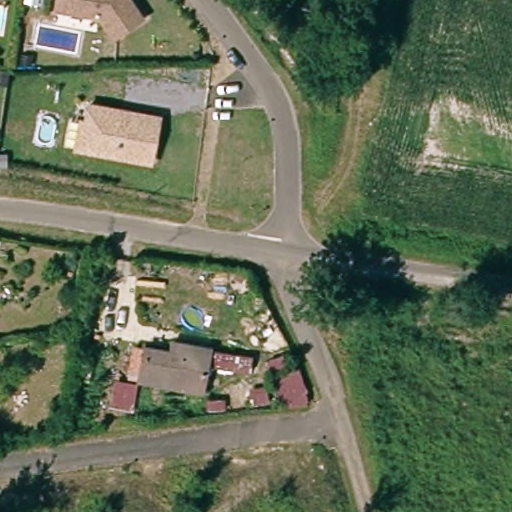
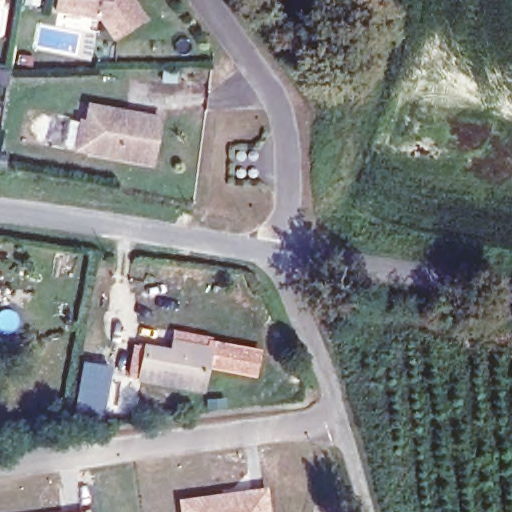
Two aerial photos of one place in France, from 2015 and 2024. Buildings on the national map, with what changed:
unchanged [(142,15),(113,35),(99,15),(55,7),(56,0),(132,0),(142,15)]
unchanged [(5,88),(0,87),(0,73),(7,74),(5,88)]
unchanged [(81,128),(86,128),(89,110),(121,115),(140,118),(159,121),(152,165),(89,156),(77,154),(81,128)]
new [(197,369),(201,351),(181,346),(170,344),(173,331),(213,338),(213,341),(232,345),(232,348),(256,352),(253,378),(197,369)]
unchanged [(164,353),(166,343),(181,346),(201,351),(192,392),(134,379),(140,348),(164,353)]
new [(98,418),(71,413),(81,362),(107,367),(98,418)]
unchanged [(111,387),(126,389),(124,405),(109,402),(111,387)]
new [(179,512),(176,498),(266,487),(270,512),(179,512)]

